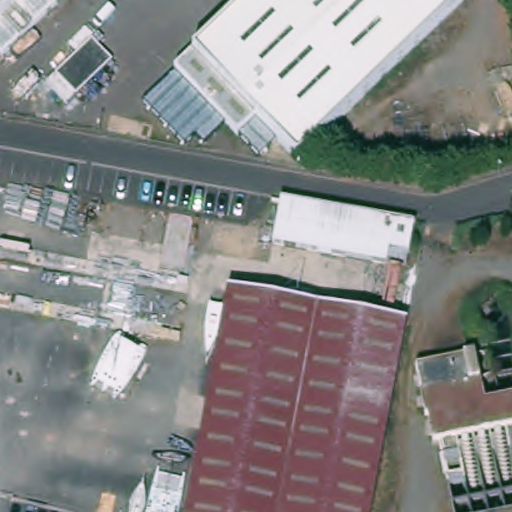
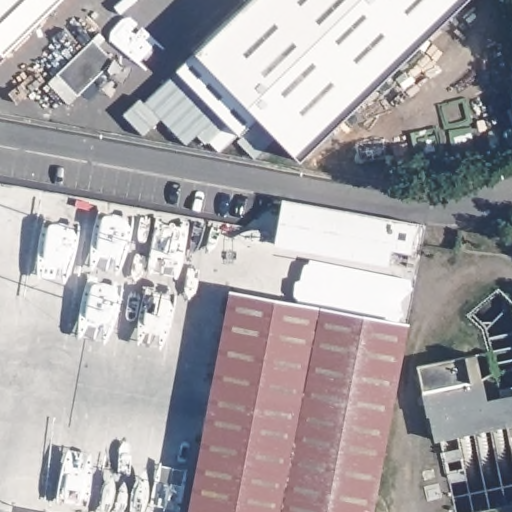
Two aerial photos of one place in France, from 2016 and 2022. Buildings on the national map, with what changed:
unchanged [(0,51),(0,0),(61,0),(4,55),(0,51)]
unchanged [(258,118),(240,136),(177,72),(251,0),(466,0),(300,161),(258,118)]
unchanged [(115,60),(78,95),(57,74),(94,39),(115,60)]
unchanged [(388,248),(386,264),(273,243),(282,198),(395,219),(413,223),(408,252),(388,248)]
unchanged [(369,512),(188,512),(228,289),(405,322),(379,461),(369,512)]
unchanged [(485,402),(512,398),(512,422),(434,438),(429,415),(427,415),(417,366),(475,354),(485,402)]

